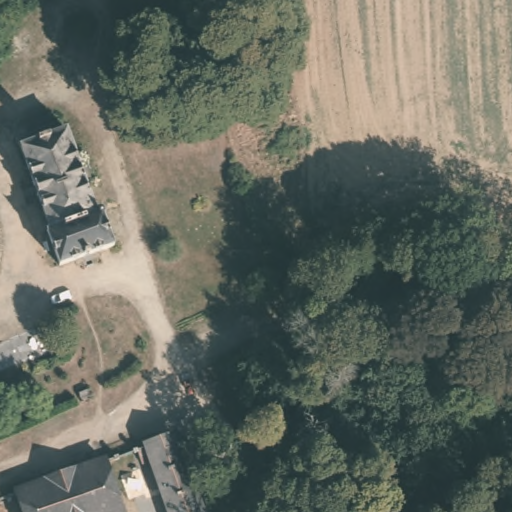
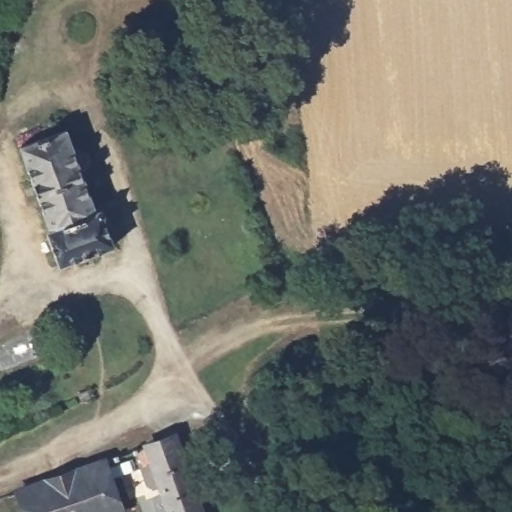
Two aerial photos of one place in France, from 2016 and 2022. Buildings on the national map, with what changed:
unchanged [(53,128),(85,211),(89,210),(102,242),(49,263),(35,229),(40,226),(12,144),(53,128)]
unchanged [(161,512),(137,448),(165,438),(192,512),(161,512)]
unchanged [(102,512),(16,512),(8,490),(94,458),(112,508),(102,512)]

